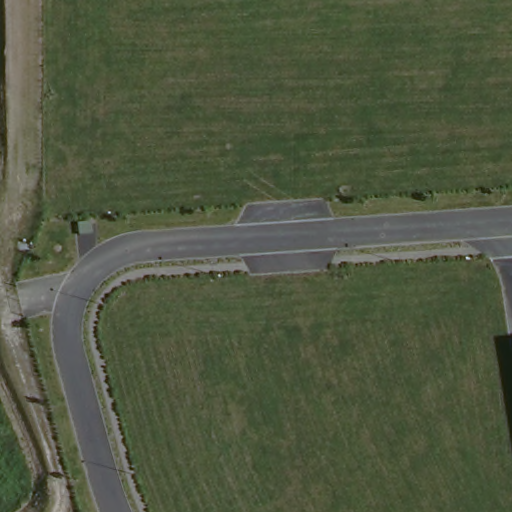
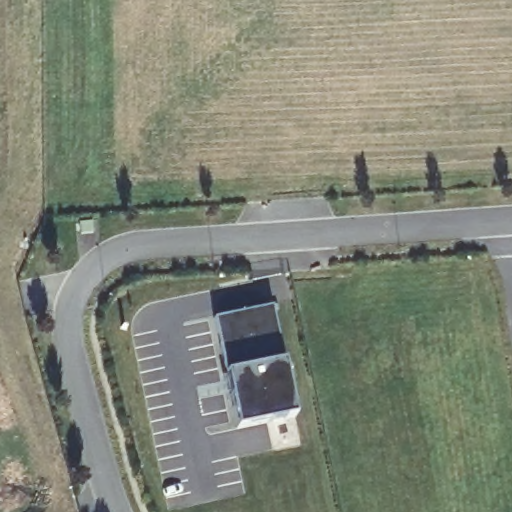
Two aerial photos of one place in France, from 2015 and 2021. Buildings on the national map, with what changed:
new [(271,306),(284,361),(295,415),(238,428),(226,375),(215,320),(271,306)]

